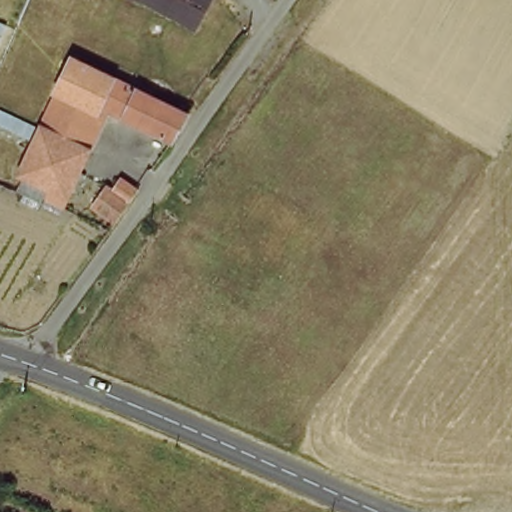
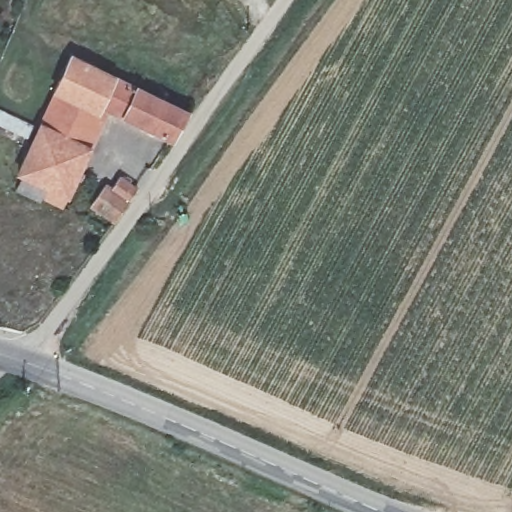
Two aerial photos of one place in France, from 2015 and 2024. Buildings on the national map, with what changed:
demolished [(194,35),(132,0),(212,0),(194,35)]
unchanged [(73,57),(186,115),(170,139),(106,112),(59,206),(39,196),(45,184),(18,169),(73,57)]
unchanged [(88,213),(102,192),(110,197),(119,184),(137,195),(111,230),(88,213)]

